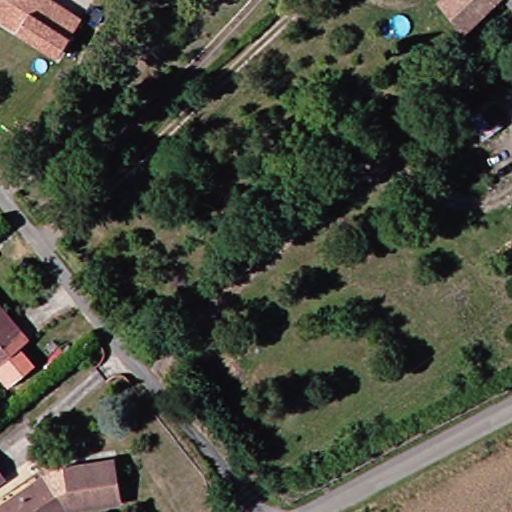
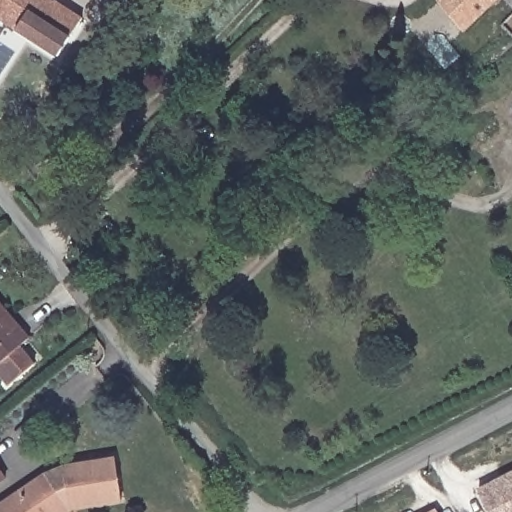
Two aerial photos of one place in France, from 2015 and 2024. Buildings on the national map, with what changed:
unchanged [(56,58),(0,22),(0,0),(53,0),(82,17),(56,58)]
unchanged [(444,0),(500,0),(468,30),(444,0)]
unchanged [(504,124),(484,137),(470,118),(489,104),(504,124)]
unchanged [(9,308),(5,312),(21,328),(24,325),(35,338),(1,367),(0,366),(0,298),(9,308)]
unchanged [(126,500),(76,510),(72,512),(0,512),(0,508),(50,475),(68,467),(119,458),(126,500)]
unchanged [(5,477),(0,481),(0,471),(5,477)]
new [(512,512),(489,512),(478,490),(512,473),(512,512)]
new [(437,512),(432,512),(436,510),(437,512)]

